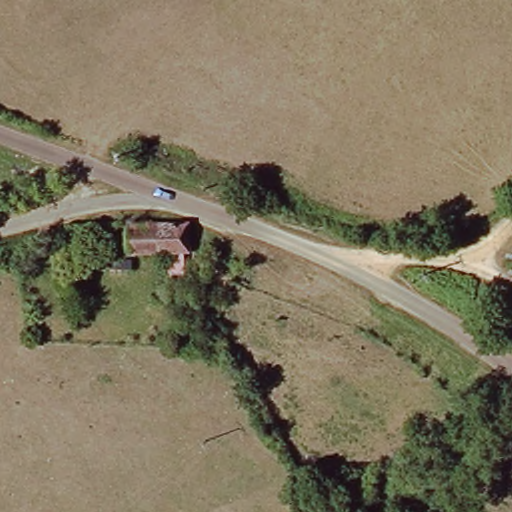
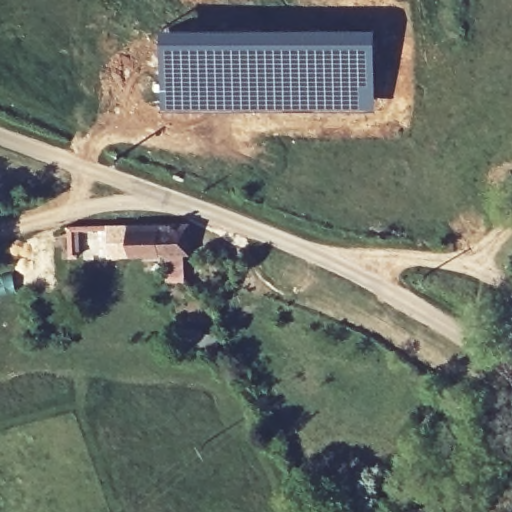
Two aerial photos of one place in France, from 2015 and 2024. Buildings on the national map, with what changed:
new [(163,26),(375,27),(375,110),(163,109),(163,26)]
unchanged [(161,257),(130,256),(129,223),(163,225),(161,257)]
unchanged [(190,226),(190,256),(180,254),(177,282),(159,281),(161,257),(163,225),(190,226)]

